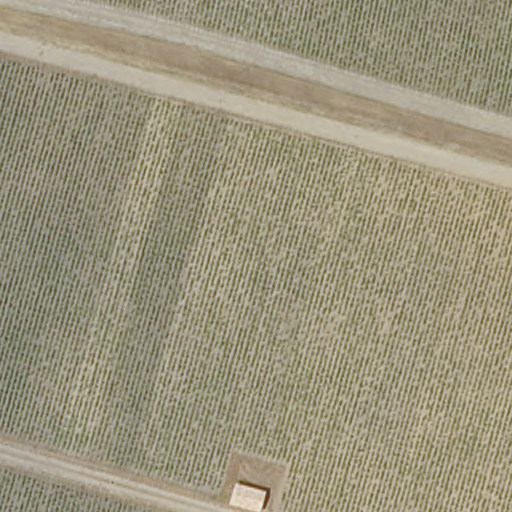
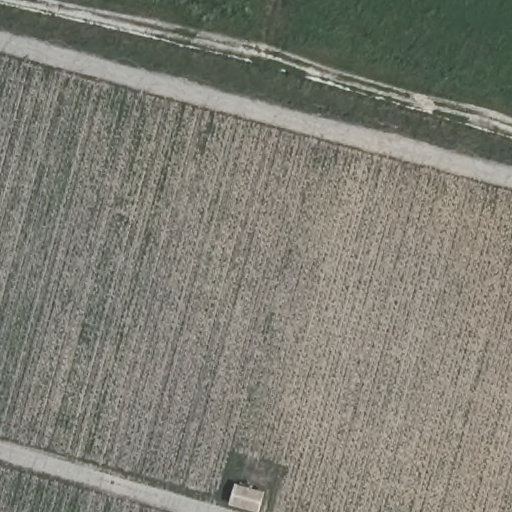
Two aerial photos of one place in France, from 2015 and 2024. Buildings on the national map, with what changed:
unchanged [(228,504),(232,485),(262,493),(258,511),(228,504)]

